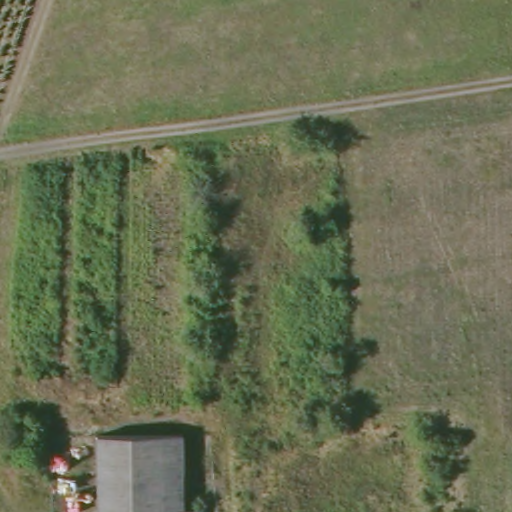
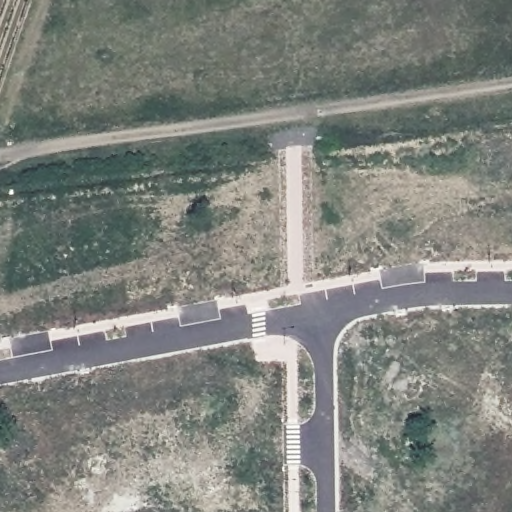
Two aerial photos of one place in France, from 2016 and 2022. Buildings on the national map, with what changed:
demolished [(96,437),(160,436),(162,512),(97,512),(96,437)]
demolished [(181,511),(194,510),(194,512),(162,512),(181,511)]

